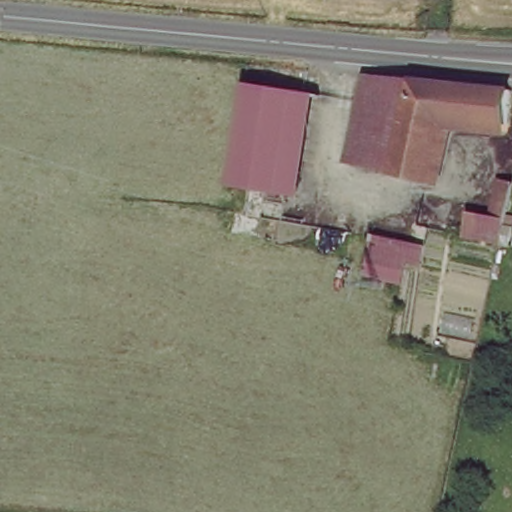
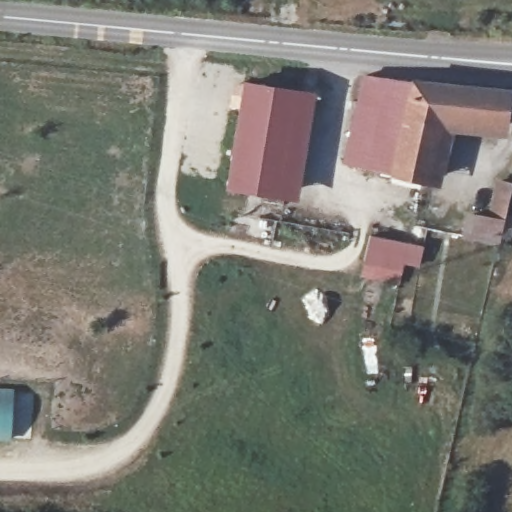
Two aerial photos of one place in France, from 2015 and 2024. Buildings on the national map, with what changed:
unchanged [(350,156),(368,74),(391,76),(370,161),(350,156)]
unchanged [(512,87),(512,107),(510,120),(445,113),(430,175),(370,161),(391,76),(512,87)]
unchanged [(309,92),(294,192),(240,183),(255,84),(309,92)]
unchanged [(467,208),(490,214),(500,175),(512,180),(512,216),(511,219),(512,219),(512,252),(460,240),(467,208)]
unchanged [(418,266),(402,266),(400,285),(364,277),(370,237),(422,245),(418,266)]
new [(15,390),(12,438),(0,438),(0,390),(15,390)]

